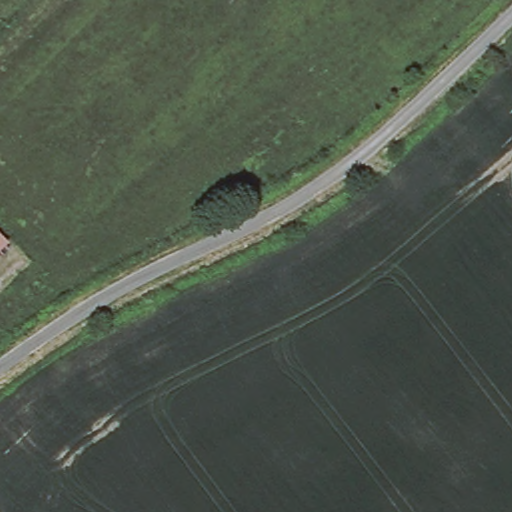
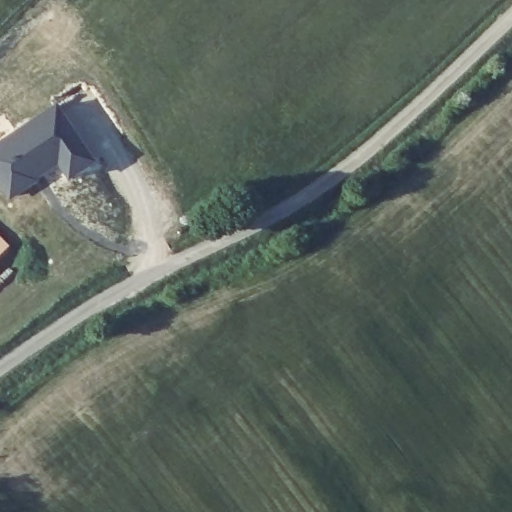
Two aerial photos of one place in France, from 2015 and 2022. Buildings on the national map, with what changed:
new [(56,106),(94,164),(69,180),(60,163),(31,178),(34,183),(8,199),(0,187),(0,142),(56,106)]
unchanged [(9,248),(0,256),(0,238),(9,248)]

